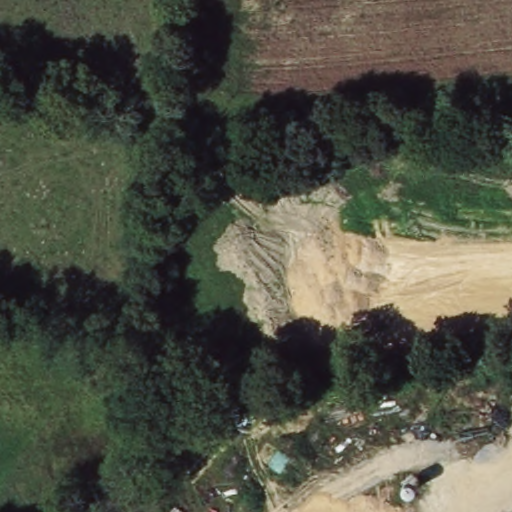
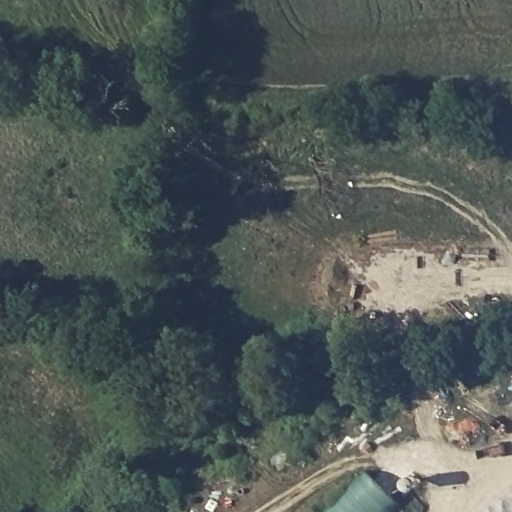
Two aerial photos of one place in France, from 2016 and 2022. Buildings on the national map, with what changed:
new [(393,512),(330,512),(368,473),(399,506),(393,512)]

